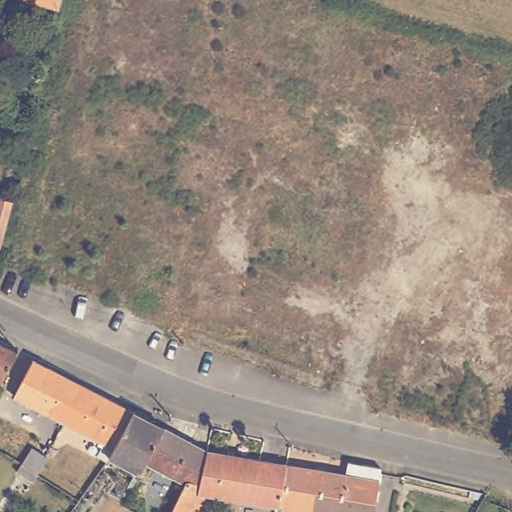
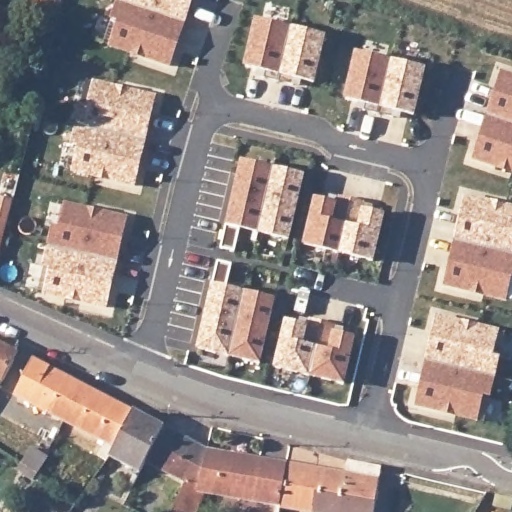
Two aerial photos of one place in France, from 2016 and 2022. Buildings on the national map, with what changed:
unchanged [(59,12),(24,0),(63,0),(59,12)]
new [(184,24),(118,1),(118,0),(192,0),(184,24)]
new [(110,46),(118,21),(111,20),(118,1),(184,24),(170,66),(110,46)]
new [(292,30),(280,83),(265,80),(266,73),(247,69),(258,22),(292,30)]
new [(292,30),(326,39),(316,84),(297,80),(295,86),(280,83),(292,30)]
new [(392,63),(380,116),(365,112),(366,105),(347,101),(358,55),(392,63)]
new [(392,63),(426,71),(415,117),(396,112),(395,120),(380,116),(392,63)]
new [(512,77),(512,125),(489,117),(503,74),(512,77)]
new [(155,97),(145,142),(76,126),(81,107),(88,109),(94,83),(155,97)]
new [(475,160),(489,117),(512,125),(512,173),(475,160)]
new [(79,146),(72,145),(76,126),(145,142),(135,186),(73,171),(79,146)]
unchanged [(13,162),(10,174),(4,172),(6,160),(13,162)]
new [(241,230),(236,254),(222,250),(228,226),(229,227),(244,164),(305,178),(290,241),(241,230)]
new [(465,197),(512,209),(512,255),(455,242),(465,197)]
new [(307,246),(317,201),(336,205),(338,199),(353,202),(340,255),(307,246)]
new [(1,228),(0,234),(0,201),(8,202),(1,228)]
new [(368,205),(366,212),(385,217),(374,262),(340,255),(353,202),(368,205)]
new [(127,219),(116,263),(48,247),(53,228),(60,230),(66,205),(127,219)]
new [(455,242),(512,255),(512,276),(512,275),(506,301),(444,286),(455,242)]
new [(45,293),(51,268),(44,266),(48,247),(116,263),(106,307),(45,293)]
new [(213,287),(219,263),(233,266),(227,290),(276,301),(261,365),(200,351),(215,287),(213,287)]
new [(498,332),(492,357),(499,360),(494,378),(426,362),(436,317),(498,332)]
new [(283,324),(302,329),(304,322),(318,325),(306,378),(272,370),(283,324)]
new [(318,325),(333,329),(332,336),(351,340),(340,386),(306,378),(318,325)]
unchanged [(0,382),(0,344),(17,352),(1,383),(0,382)]
unchanged [(111,456),(109,458),(106,462),(97,456),(106,444),(14,396),(33,360),(133,413),(111,456)]
new [(415,406),(426,362),(494,378),(490,397),(483,396),(477,421),(415,406)]
unchanged [(146,463),(140,474),(109,458),(111,456),(133,413),(164,429),(146,463)]
unchanged [(164,429),(207,452),(200,483),(187,482),(185,484),(146,463),(164,429)]
unchanged [(16,472),(21,465),(32,449),(48,460),(38,475),(33,482),(16,472)]
unchanged [(288,465),(281,507),(206,495),(197,512),(171,512),(185,484),(187,482),(200,483),(207,452),(287,465),(288,465)]
unchanged [(281,507),(288,465),(346,475),(348,462),(381,468),(374,512),(302,512),(281,508),(281,507)]

